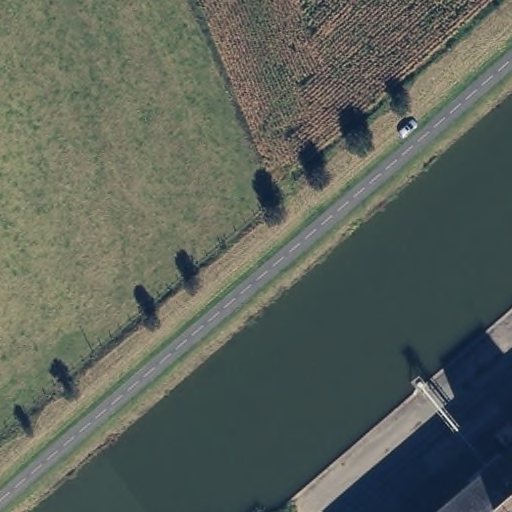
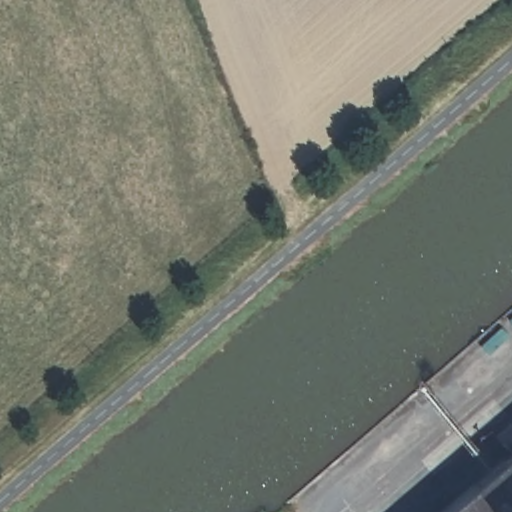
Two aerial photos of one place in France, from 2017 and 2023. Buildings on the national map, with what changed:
unchanged [(512,512),(446,512),(512,455),(512,512)]

